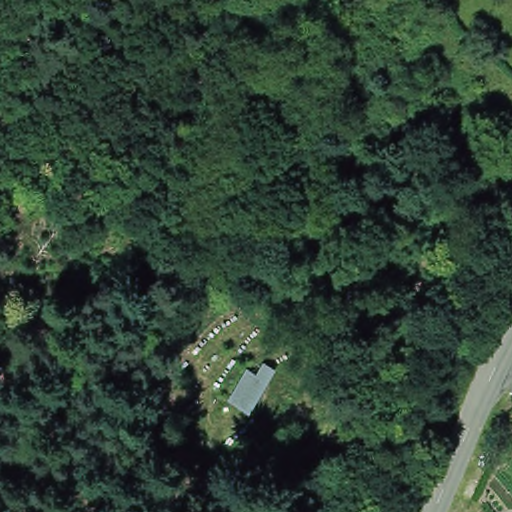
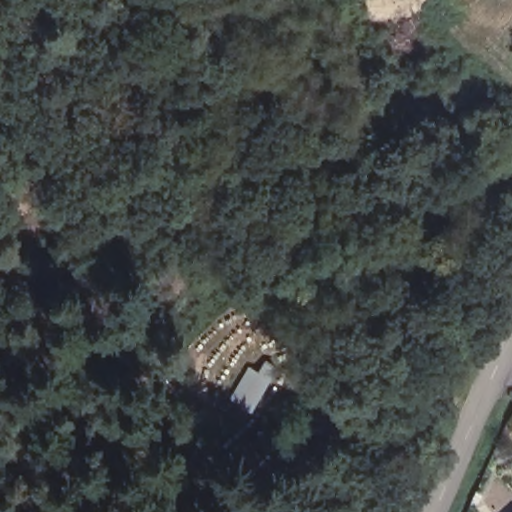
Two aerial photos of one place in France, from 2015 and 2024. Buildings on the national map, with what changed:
unchanged [(250,368),(258,373),(266,360),(277,368),(251,413),(230,399),(250,368)]

